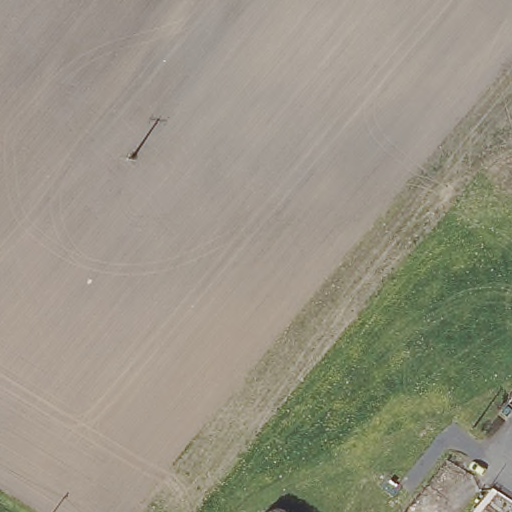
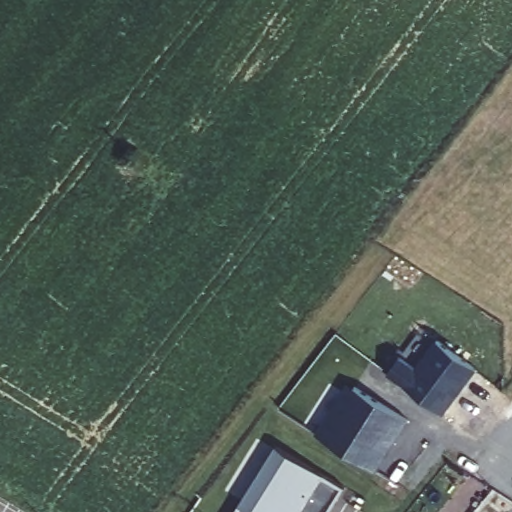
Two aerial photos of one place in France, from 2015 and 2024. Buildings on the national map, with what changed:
new [(397,351),(413,363),(434,335),(472,363),(439,408),(385,367),(397,351)]
new [(330,412),(335,416),(356,383),(409,417),(377,468),(317,430),(330,412)]
new [(275,444),(344,486),(328,512),(233,512),(275,444)]

